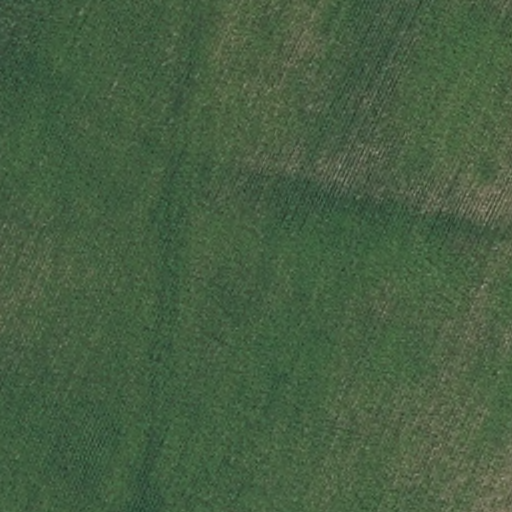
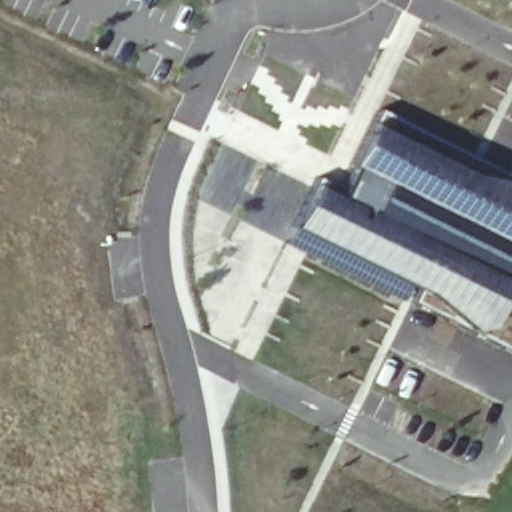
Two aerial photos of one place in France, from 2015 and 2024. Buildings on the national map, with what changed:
new [(413,302),(419,288),(293,226),(316,177),(340,187),(366,134),(378,111),(512,177),(512,351),(413,302)]

